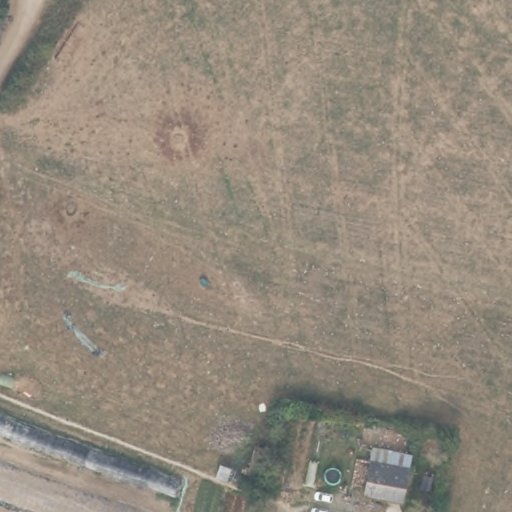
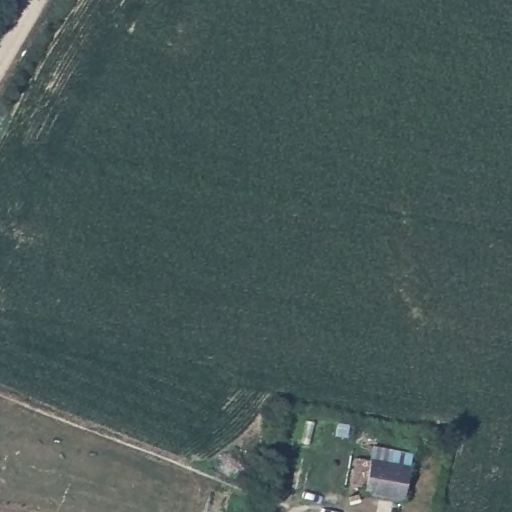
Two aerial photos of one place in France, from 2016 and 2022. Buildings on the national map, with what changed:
unchanged [(391,461),(393,448),(412,452),(403,502),(364,494),(369,457),(391,461)]

